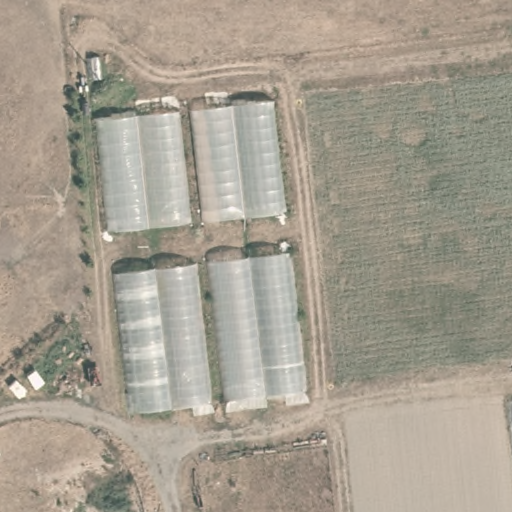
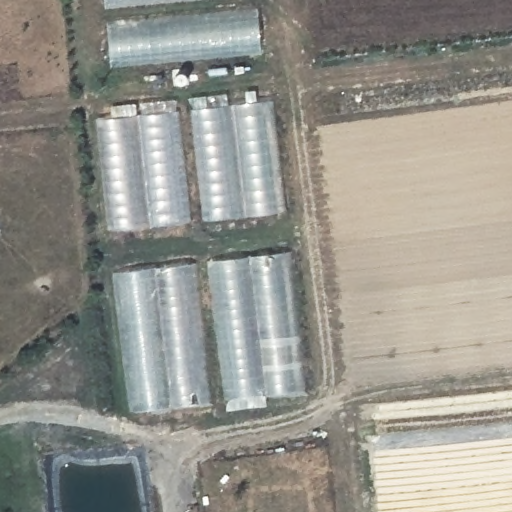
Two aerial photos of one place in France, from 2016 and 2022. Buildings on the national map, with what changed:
new [(105,0),(137,0),(106,3),(105,0)]
new [(262,52),(111,66),(107,22),(257,9),(262,52)]
unchanged [(204,220),(192,109),(272,100),(284,210),(204,220)]
unchanged [(110,230),(99,120),(177,111),(191,222),(110,230)]
unchanged [(227,398),(210,261),(287,252),(303,390),(227,398)]
unchanged [(133,409),(117,272),(194,263),(210,401),(133,409)]

